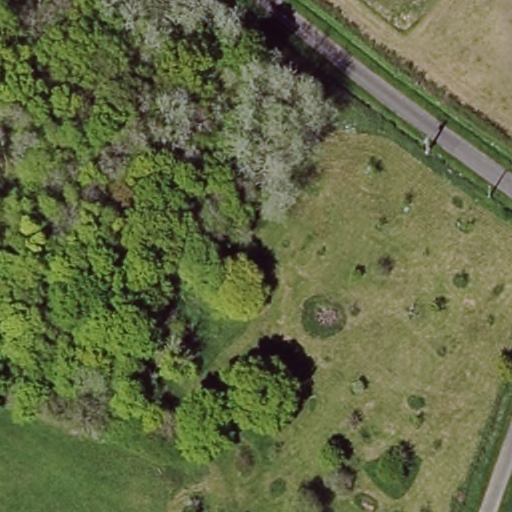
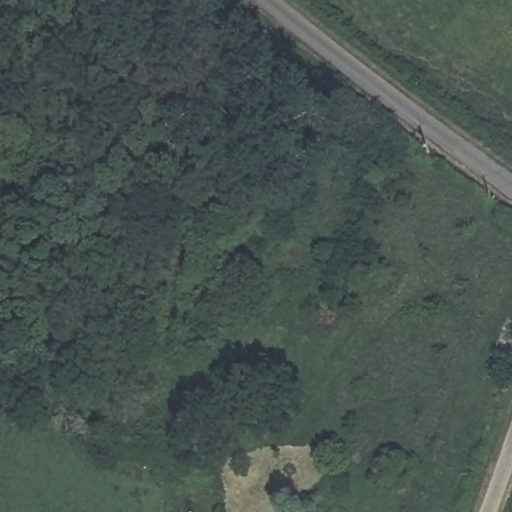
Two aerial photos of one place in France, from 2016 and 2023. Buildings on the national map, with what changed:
[]

